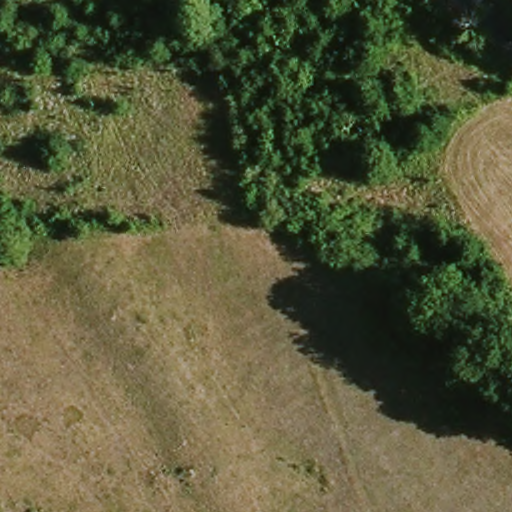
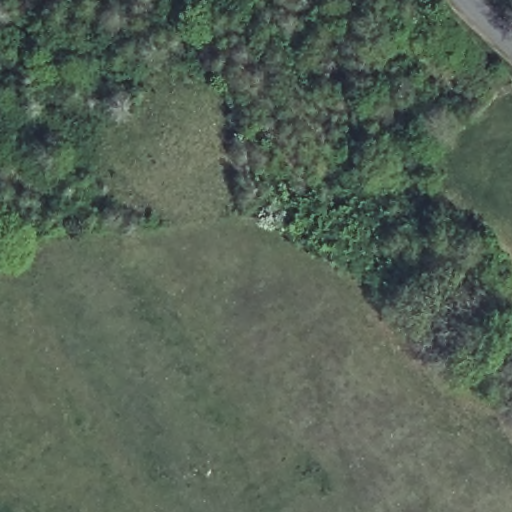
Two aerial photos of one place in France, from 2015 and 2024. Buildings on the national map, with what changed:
[]

